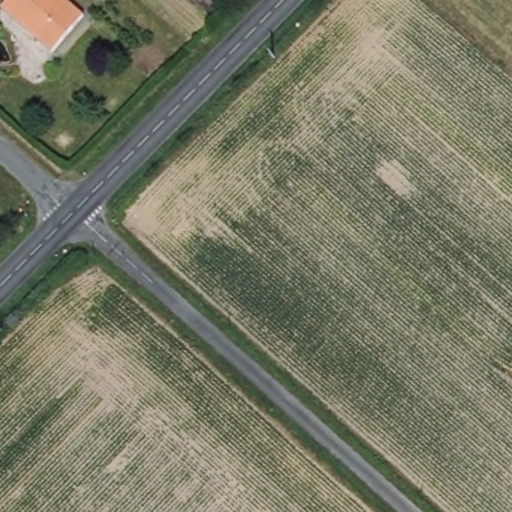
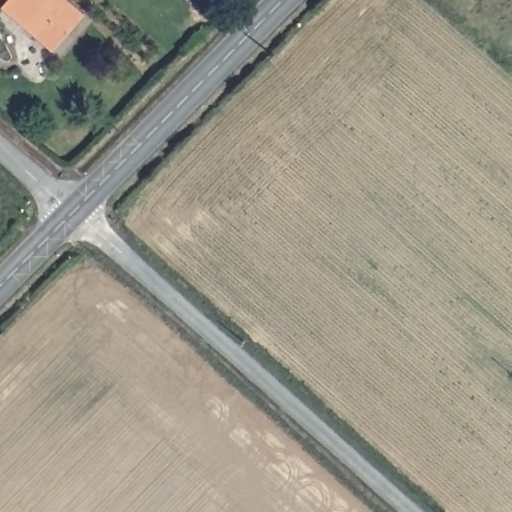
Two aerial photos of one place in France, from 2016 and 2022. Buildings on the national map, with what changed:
unchanged [(5,0),(68,0),(89,17),(58,53),(25,26),(5,10),(10,3),(5,0)]

